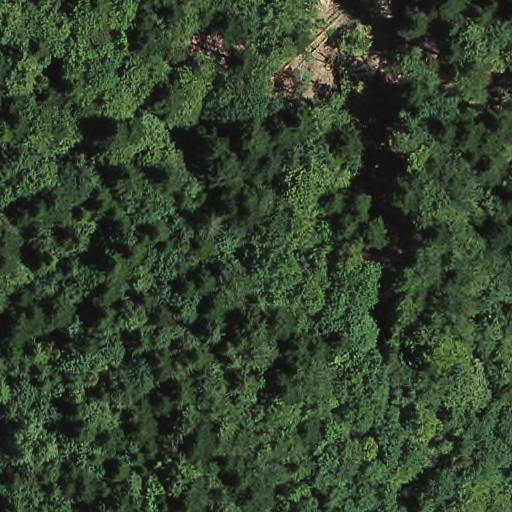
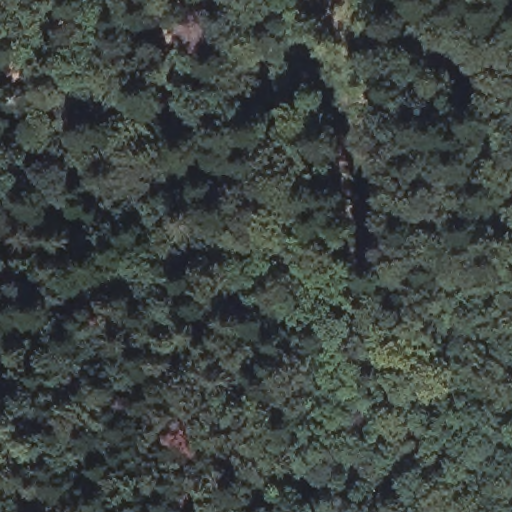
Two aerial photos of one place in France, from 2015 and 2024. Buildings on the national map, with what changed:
[]

